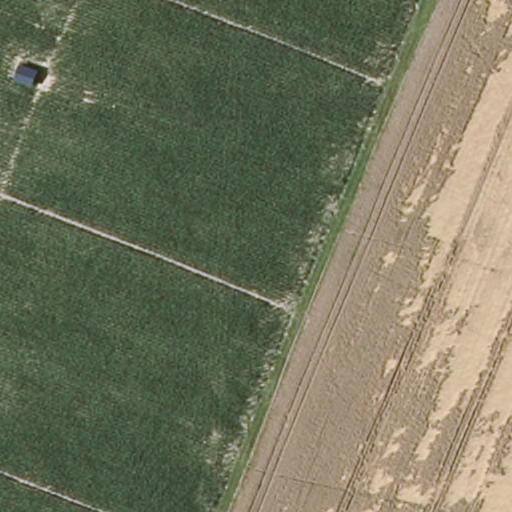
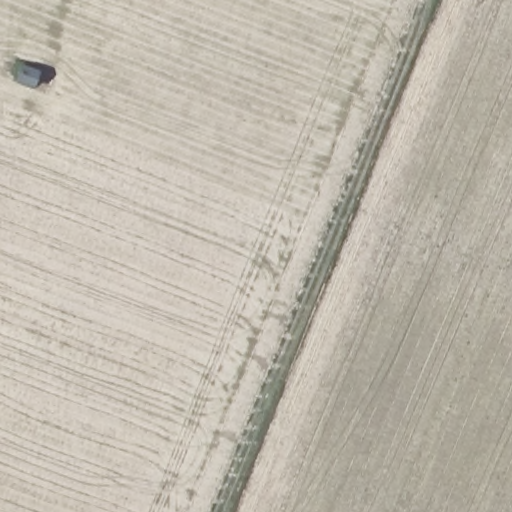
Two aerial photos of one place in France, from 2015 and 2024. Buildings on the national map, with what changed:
unchanged [(38,76),(33,86),(18,80),(22,69),(38,76)]

